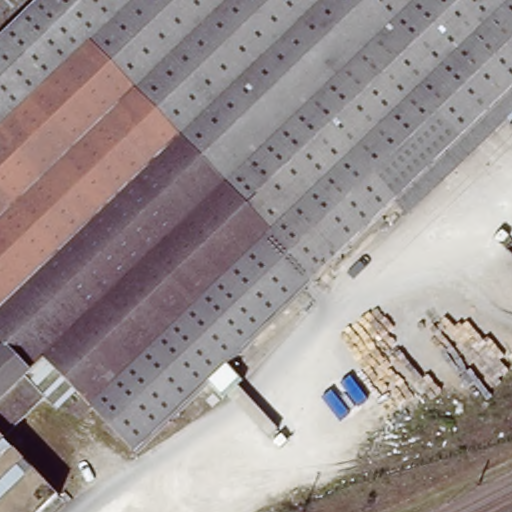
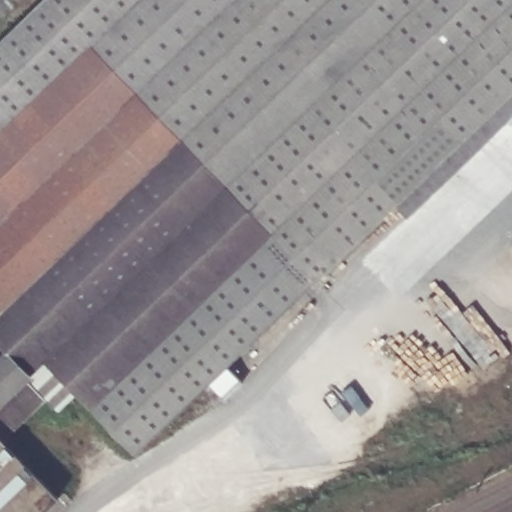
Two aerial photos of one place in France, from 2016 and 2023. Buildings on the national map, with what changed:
unchanged [(512,128),(508,125),(497,113),(395,209),(227,370),(242,386),(224,404),(209,388),(135,459),(73,394),(55,411),(46,403),(2,445),(59,503),(49,512),(0,512),(0,46),(48,0),(512,0),(512,128)]
unchanged [(508,125),(407,221),(395,209),(497,113),(508,125)]

